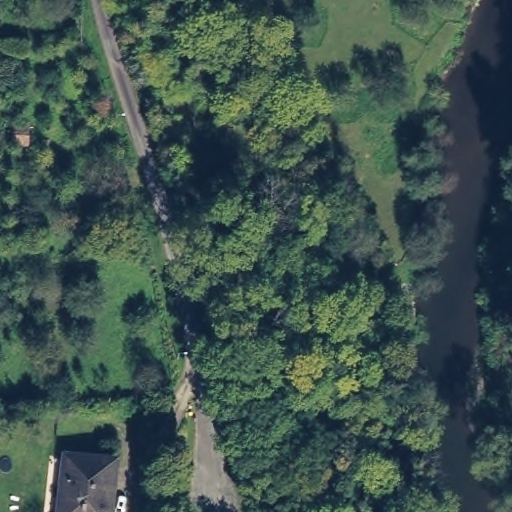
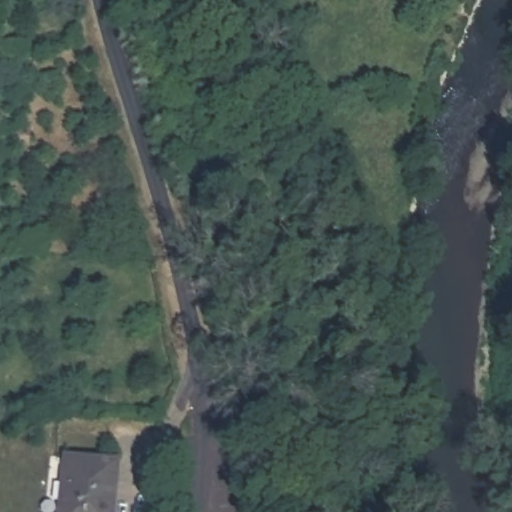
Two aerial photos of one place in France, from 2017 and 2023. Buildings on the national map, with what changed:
unchanged [(110,512),(60,512),(67,452),(117,458),(110,512)]

